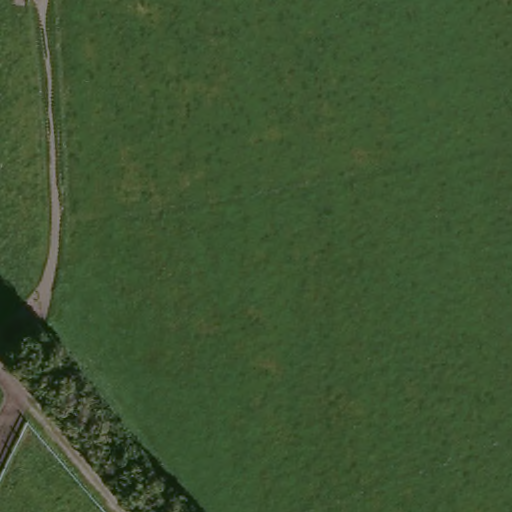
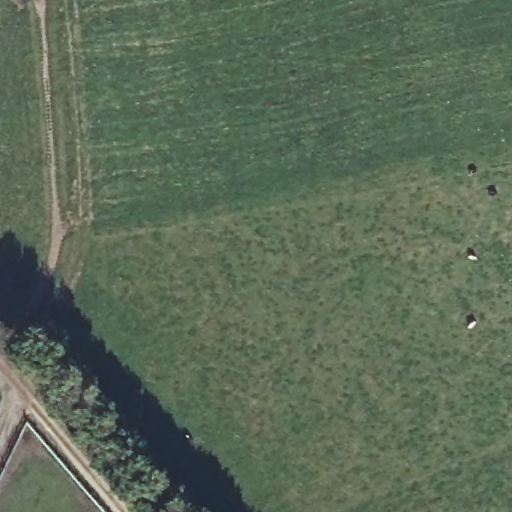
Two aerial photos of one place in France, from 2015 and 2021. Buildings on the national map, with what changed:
[]

